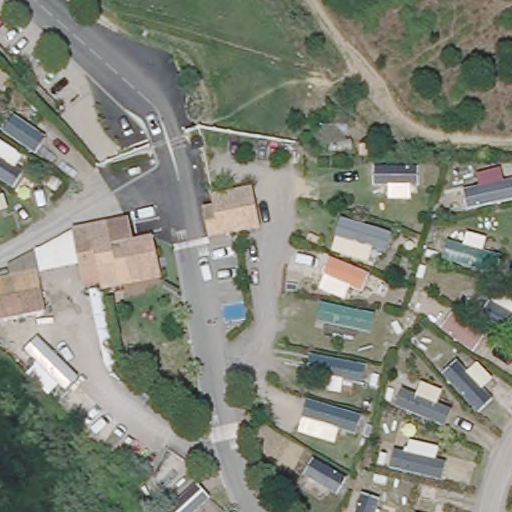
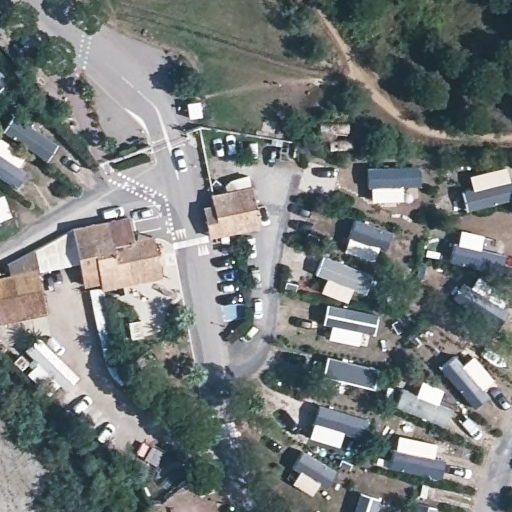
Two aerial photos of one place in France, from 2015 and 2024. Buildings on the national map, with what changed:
unchanged [(206,205),(218,203),(217,193),(255,185),(263,225),(224,232),(212,235),(206,205)]
unchanged [(99,283),(83,286),(71,231),(128,220),(133,242),(136,241),(152,239),(154,248),(162,280),(127,286),(100,291),(99,283)]
unchanged [(66,234),(72,244),(40,261),(35,251),(66,234)]
unchanged [(33,252),(46,313),(0,322),(0,278),(10,276),(8,265),(33,252)]

